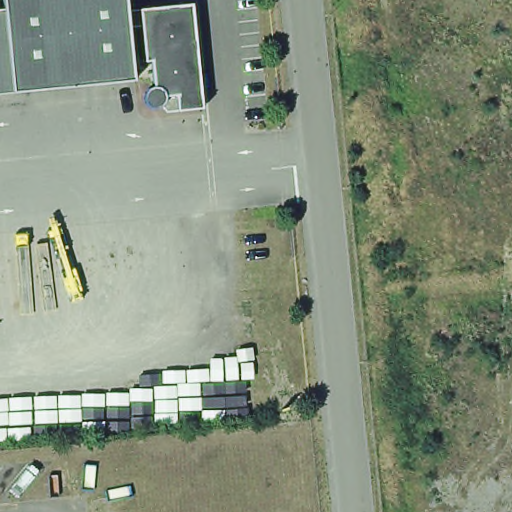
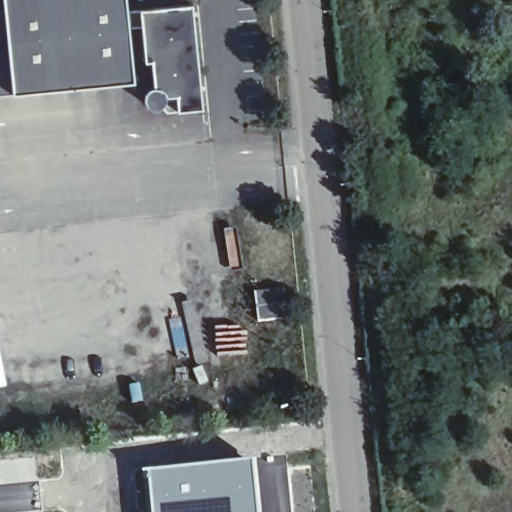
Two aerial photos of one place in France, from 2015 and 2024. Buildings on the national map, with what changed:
unchanged [(172,106),(171,101),(160,103),(156,108),(150,109),(145,109),(140,105),(138,99),(139,94),(143,89),(148,88),(145,62),(140,63),(136,27),(123,28),(129,81),(7,94),(0,24),(0,0),(121,0),(122,11),(135,9),(187,4),(197,104),(172,106)]
unchanged [(0,94),(0,24),(7,94),(0,94)]
new [(143,470),(253,458),(259,512),(148,512),(143,470)]

